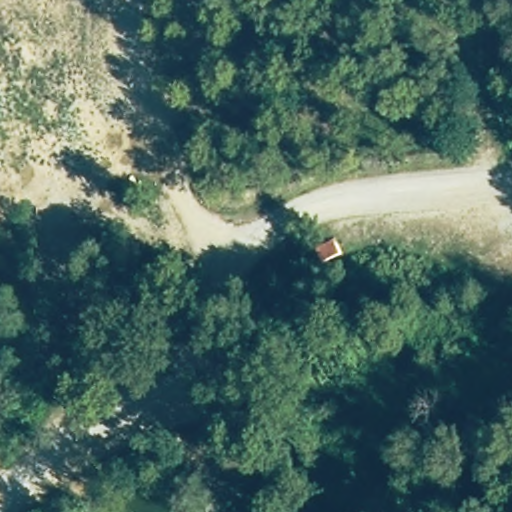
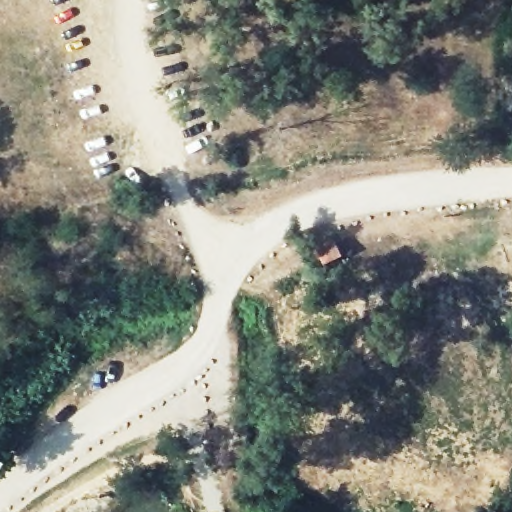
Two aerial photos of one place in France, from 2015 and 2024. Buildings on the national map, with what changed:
unchanged [(322,266),(314,251),(339,240),(344,258),(322,266)]

